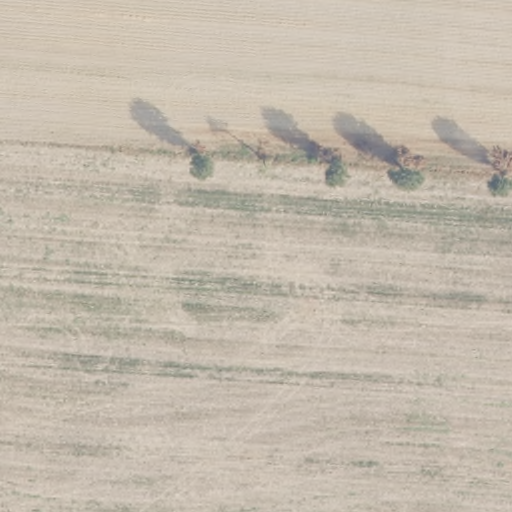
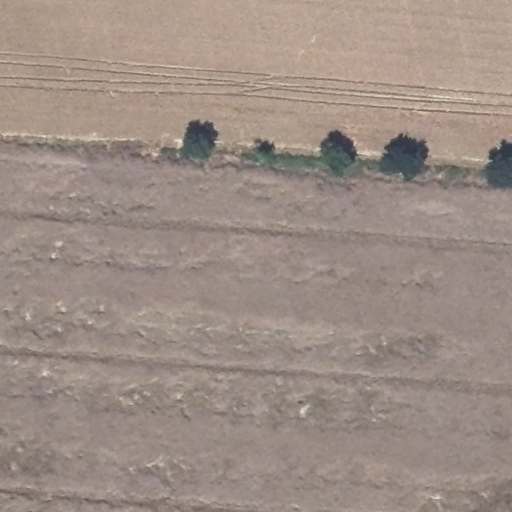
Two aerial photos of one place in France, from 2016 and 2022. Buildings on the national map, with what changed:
[]

